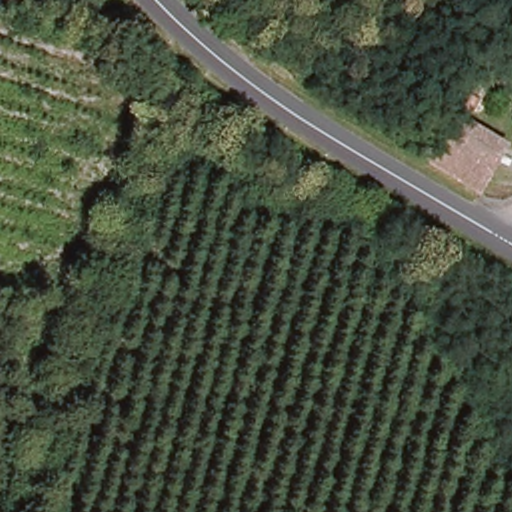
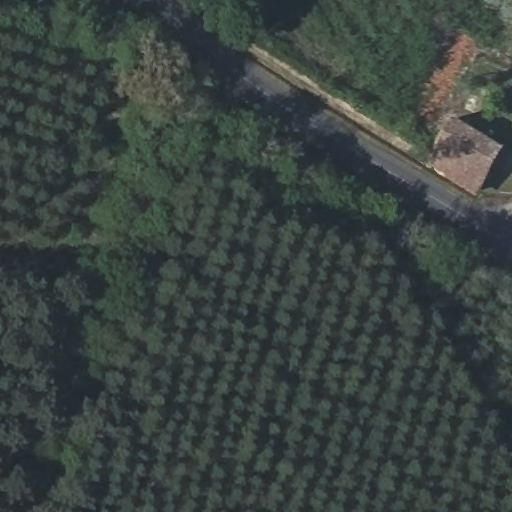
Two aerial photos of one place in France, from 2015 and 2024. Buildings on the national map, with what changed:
unchanged [(485,189),(476,184),(468,179),(445,168),(437,164),(440,151),(460,116),(511,143),(495,172),(494,172),(493,173),(485,189)]

